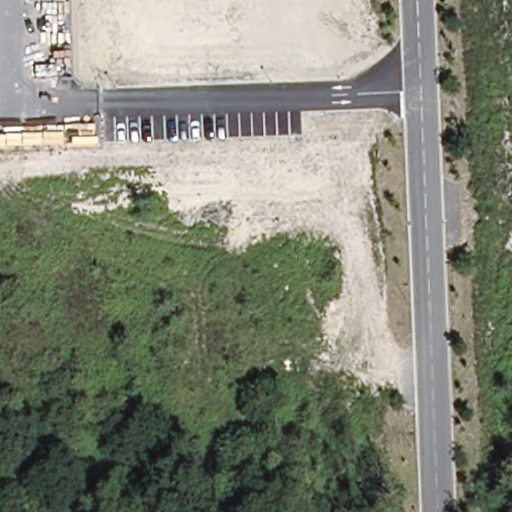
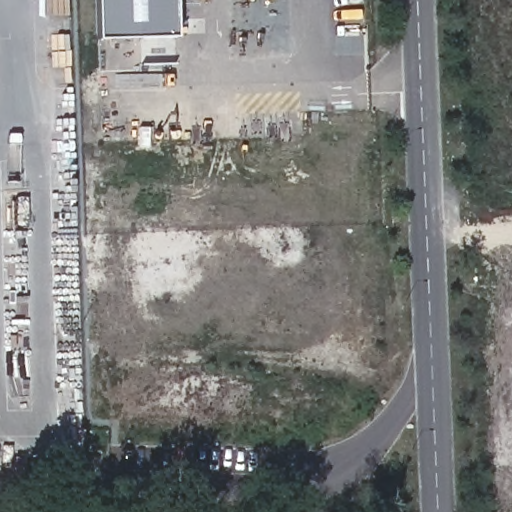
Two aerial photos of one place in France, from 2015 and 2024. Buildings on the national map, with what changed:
new [(176,37),(98,40),(97,0),(175,0),(176,37)]

